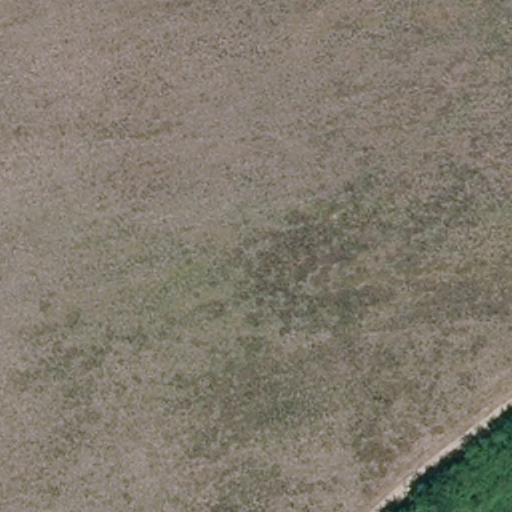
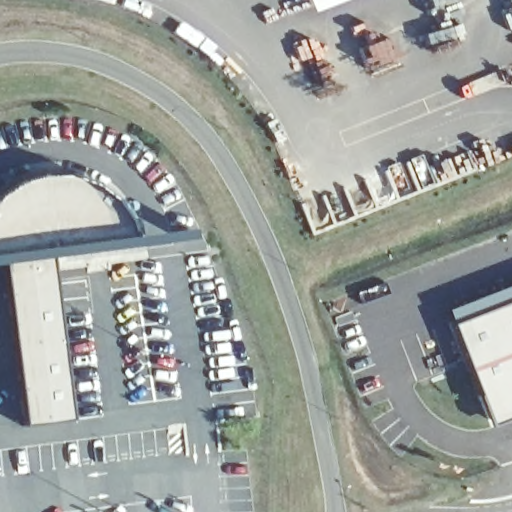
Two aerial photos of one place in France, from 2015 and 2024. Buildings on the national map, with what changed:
new [(311,12),(306,0),(342,0),(311,12)]
new [(0,267),(0,192),(2,190),(24,179),(49,175),(72,177),(107,193),(129,228),(130,246),(51,258),(70,419),(26,424),(5,267),(0,267)]
new [(492,426),(446,312),(512,286),(512,418),(492,426)]

